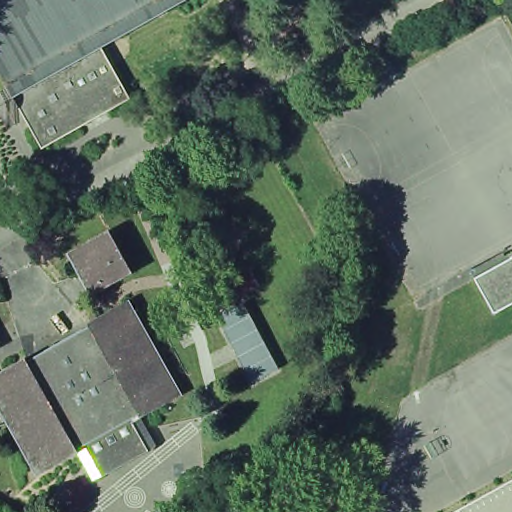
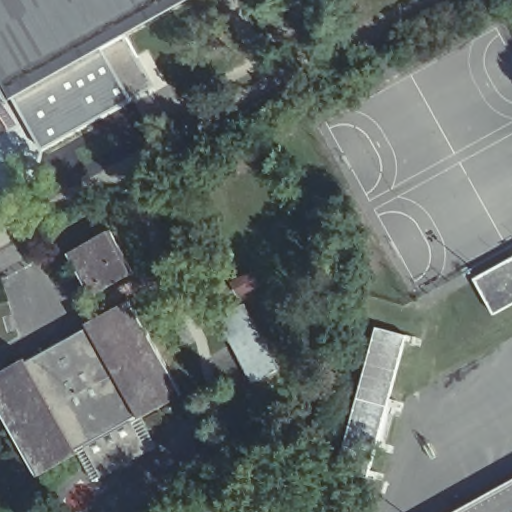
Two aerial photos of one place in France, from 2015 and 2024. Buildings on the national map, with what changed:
unchanged [(107,53),(136,104),(48,154),(0,68),(0,0),(194,0),(195,3),(107,53)]
unchanged [(133,272),(92,296),(68,254),(110,230),(133,272)]
unchanged [(512,306),(499,313),(480,278),(512,260),(512,306)]
unchanged [(42,476),(0,400),(0,376),(32,358),(33,360),(94,326),(93,323),(135,300),(187,395),(146,417),(145,418),(144,415),(82,449),(85,452),(83,453),(42,476)]
unchanged [(270,345),(245,360),(220,318),(247,303),(270,345)]
new [(368,475),(339,467),(377,326),(407,334),(368,475)]
unchanged [(195,342),(185,347),(180,338),(190,333),(195,342)]
demolished [(6,347),(0,350),(0,337),(6,347)]
unchanged [(144,415),(145,418),(146,417),(162,445),(100,481),(83,453),(85,452),(82,449),(144,415)]
unchanged [(512,484),(512,512),(462,512),(512,484)]

